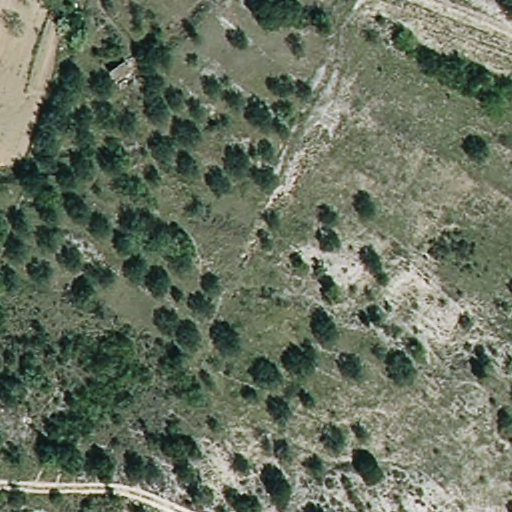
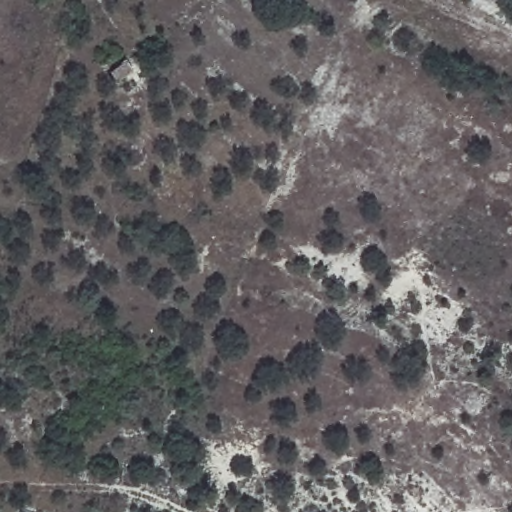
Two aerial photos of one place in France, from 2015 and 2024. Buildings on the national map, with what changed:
unchanged [(127,68),(116,78),(108,68),(120,59),(127,68)]

